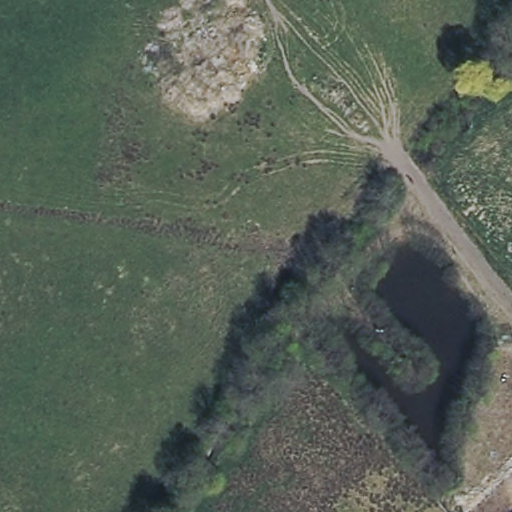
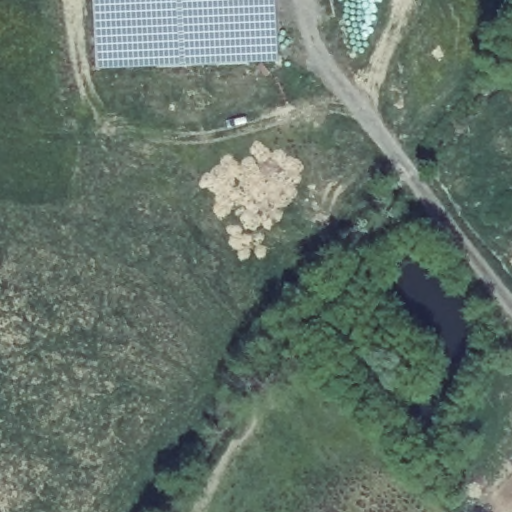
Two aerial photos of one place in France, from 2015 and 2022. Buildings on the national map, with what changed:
new [(279,64),(97,70),(95,0),(276,0),(279,64)]

